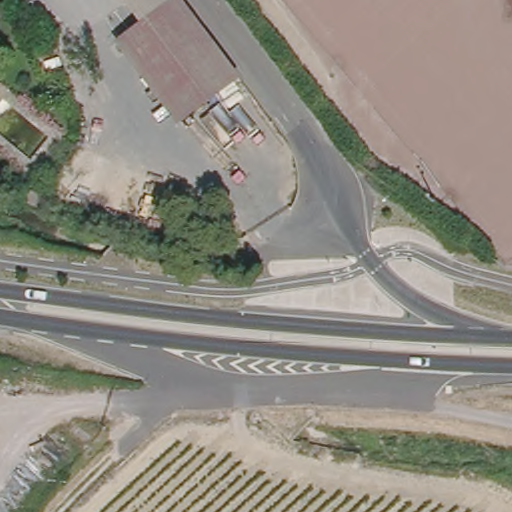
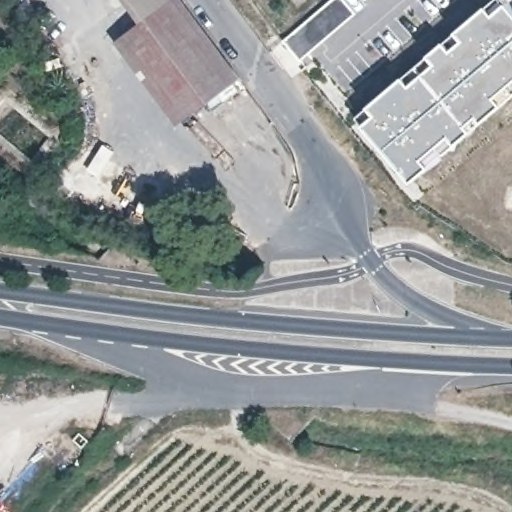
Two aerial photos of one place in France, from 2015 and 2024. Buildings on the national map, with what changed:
unchanged [(241,75),(176,122),(115,40),(141,21),(170,0),(186,0),(241,75)]
unchanged [(141,21),(125,0),(170,0),(141,21)]
new [(301,59),(286,41),(334,0),(344,0),(355,13),(301,59)]
new [(358,129),(351,121),(363,111),(405,75),(430,53),(489,4),(494,0),(508,0),(509,1),(512,5),(512,95),(499,107),(483,120),(473,129),(457,142),(431,165),(406,186),(358,129)]
unchanged [(33,189),(43,194),(39,206),(20,198),(21,195),(24,186),(33,189)]
unchanged [(0,365),(2,365),(0,379),(0,365)]

